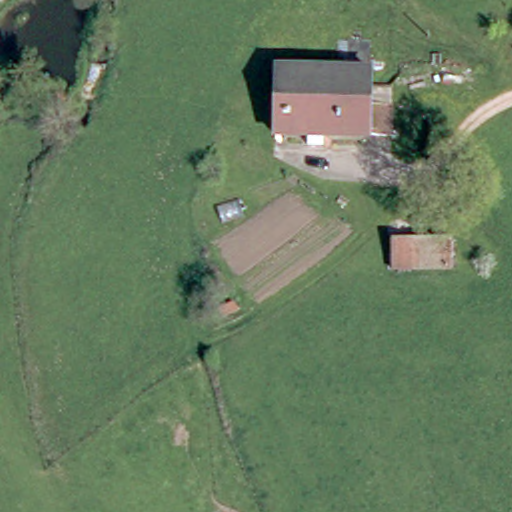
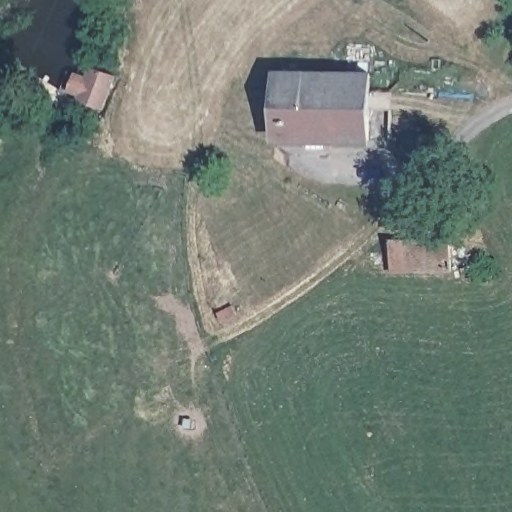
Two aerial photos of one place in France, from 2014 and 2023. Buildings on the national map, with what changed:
new [(115,75),(103,111),(76,101),(77,96),(67,92),(73,71),(85,75),(88,66),(115,75)]
unchanged [(396,137),(370,137),(276,136),(277,74),(370,71),(370,105),(395,104),(396,137)]
unchanged [(389,241),(451,239),(452,272),(390,273),(389,241)]

